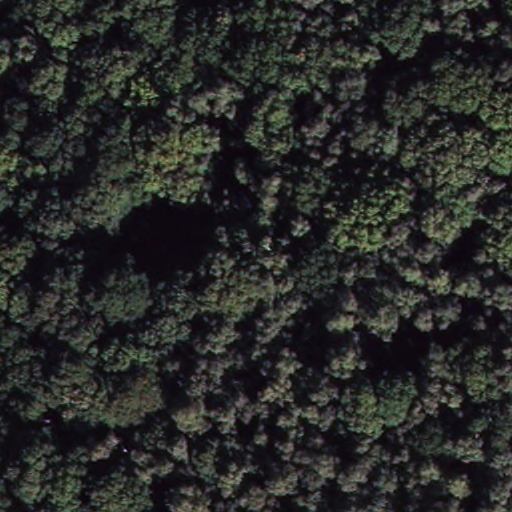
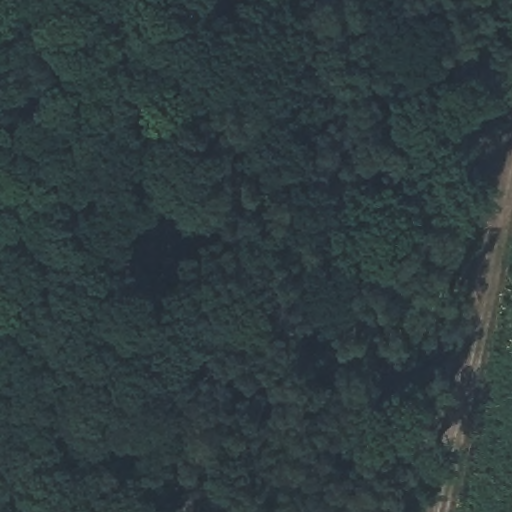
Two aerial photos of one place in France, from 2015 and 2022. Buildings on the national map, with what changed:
[]

